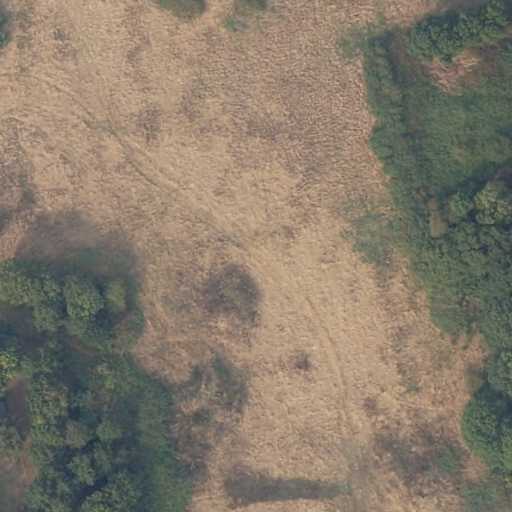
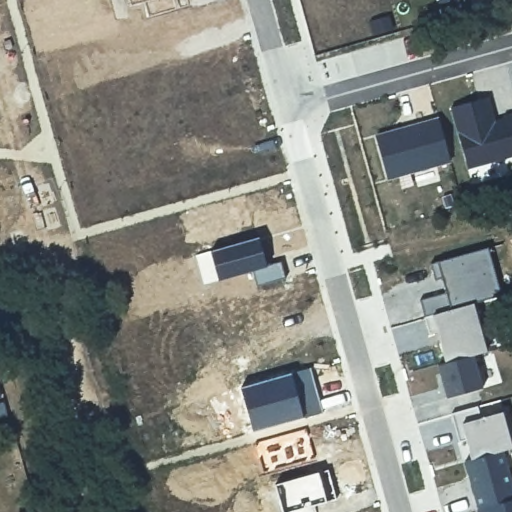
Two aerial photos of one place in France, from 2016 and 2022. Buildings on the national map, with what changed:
new [(488,97),(495,122),(507,119),(506,117),(512,115),(512,156),(468,167),(450,108),(488,97)]
new [(451,161),(389,178),(379,135),(439,116),(451,161)]
new [(421,298),(448,292),(444,277),(437,279),(432,263),(439,261),(488,247),(499,295),(474,302),(488,350),(473,355),(483,387),(448,397),(439,365),(449,362),(439,330),(429,332),(421,298)]
new [(466,461),(474,459),(469,437),(461,440),(454,411),(479,403),(479,417),(504,411),(512,440),(512,446),(502,450),(512,485),(512,499),(477,508),(466,461)]

